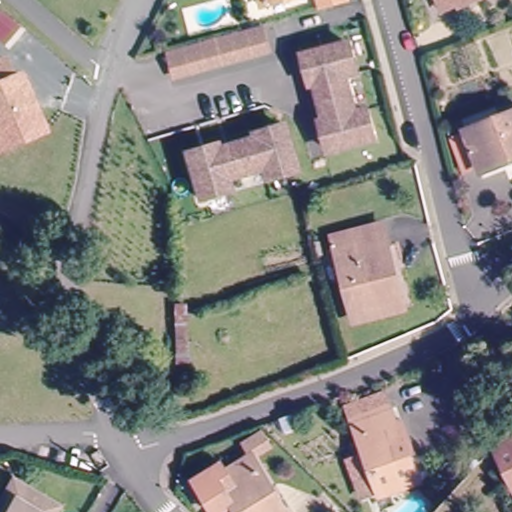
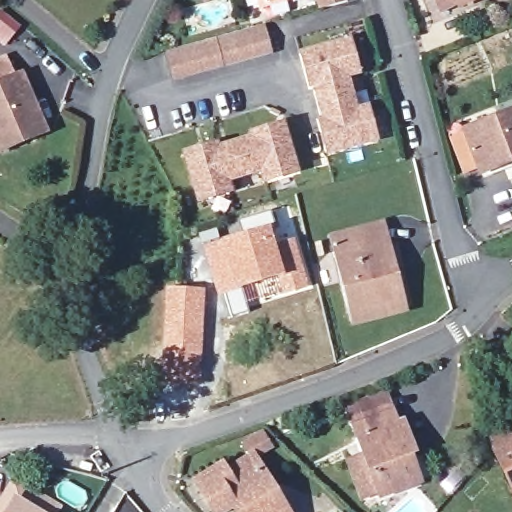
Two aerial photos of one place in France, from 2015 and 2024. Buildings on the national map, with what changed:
unchanged [(262,0),(270,0),(262,2),(262,0)]
unchanged [(320,0),(336,0),(321,4),(320,0)]
unchanged [(459,2),(442,9),(439,0),(473,0),(460,5),(459,2)]
unchanged [(8,38),(0,31),(0,13),(18,28),(8,38)]
unchanged [(169,50),(258,26),(265,52),(171,78),(164,52),(169,50)]
unchanged [(352,116),(360,114),(368,144),(325,156),(316,126),(320,125),(310,89),(306,90),(298,60),(343,48),(351,78),(343,80),(352,116)]
unchanged [(0,150),(0,61),(11,56),(20,76),(21,75),(45,131),(0,150)]
unchanged [(452,137),(466,132),(512,114),(512,161),(481,173),(478,165),(465,171),(452,137)]
unchanged [(282,121),(295,165),(265,174),(262,166),(226,177),(229,185),(199,194),(186,150),(216,141),(217,145),(253,134),(252,130),(282,121)]
new [(216,228),(219,239),(242,233),(239,221),(272,211),(276,224),(272,225),(276,240),(285,276),(255,286),(244,289),(250,310),(230,316),(222,294),(217,295),(199,233),(216,228)]
unchanged [(333,238),(382,226),(403,308),(355,321),(333,238)]
new [(285,276),(276,240),(296,235),(310,286),(260,301),(255,286),(285,276)]
new [(165,287),(205,288),(201,383),(160,383),(165,287)]
unchanged [(401,427),(412,458),(406,460),(415,488),(378,500),(377,496),(360,502),(348,465),(365,459),(353,426),(348,411),(385,398),(391,414),(396,428),(401,427)]
unchanged [(494,450),(489,427),(512,417),(512,486),(494,450)]
unchanged [(271,445),(253,456),(245,443),(263,432),(271,445)]
unchanged [(195,483),(214,471),(222,466),(226,472),(253,456),(287,512),(237,512),(232,505),(223,512),(214,512),(209,504),(195,483)]
unchanged [(15,498),(24,483),(54,501),(67,509),(66,512),(6,512),(15,498)]

